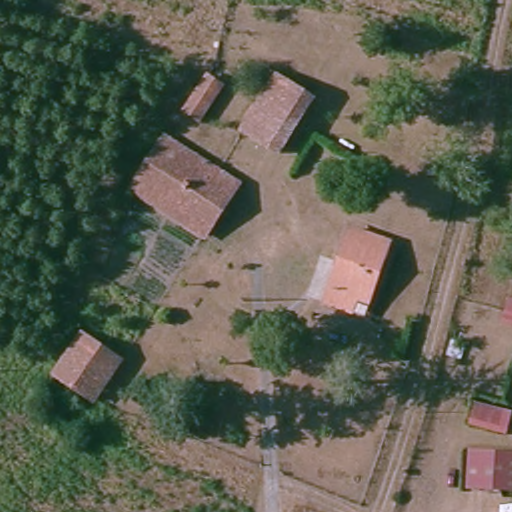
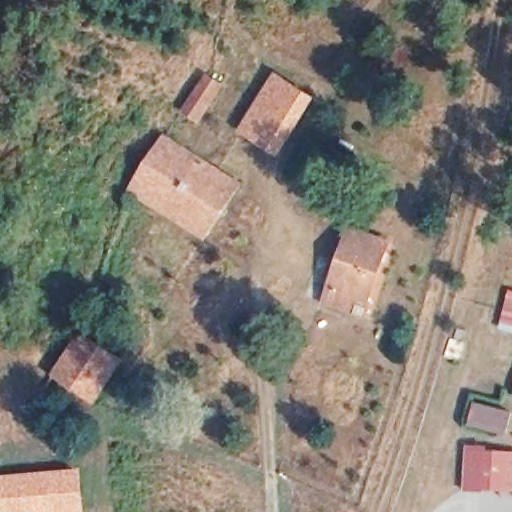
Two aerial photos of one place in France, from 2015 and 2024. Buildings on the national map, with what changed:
demolished [(512,39),(512,95),(501,93),(512,39)]
unchanged [(199,124),(181,115),(214,64),(230,76),(199,124)]
unchanged [(241,134),(276,78),(313,101),(278,156),(241,134)]
unchanged [(162,138),(234,185),(200,238),(130,190),(162,138)]
unchanged [(363,311),(351,307),(346,319),(322,308),(351,234),(387,249),(363,311)]
new [(507,296),(512,297),(512,324),(500,321),(507,296)]
unchanged [(57,378),(96,321),(135,348),(97,406),(57,378)]
new [(505,436),(465,426),(472,401),(511,411),(505,436)]
unchanged [(466,453),(512,454),(512,494),(466,492),(466,453)]
new [(81,467),(83,512),(0,512),(0,474),(81,467)]

